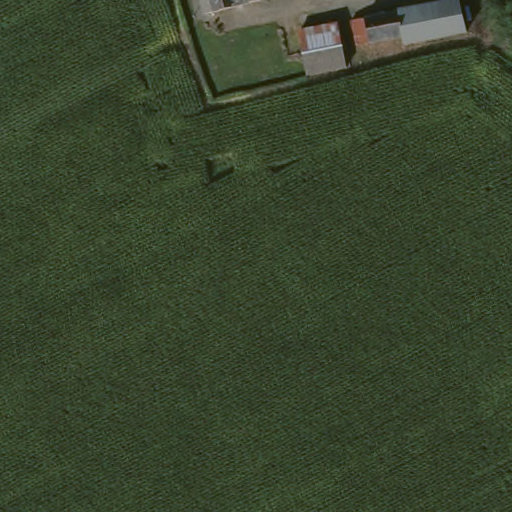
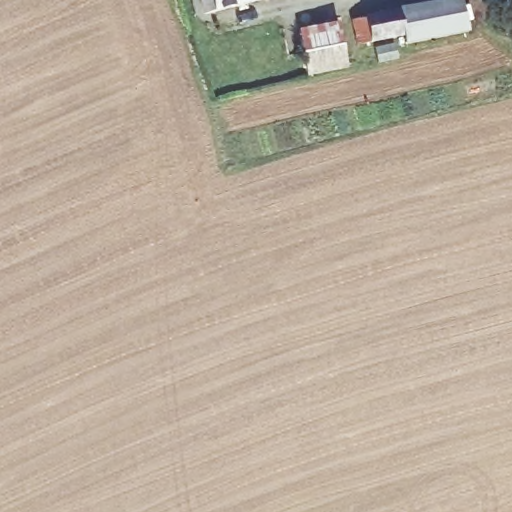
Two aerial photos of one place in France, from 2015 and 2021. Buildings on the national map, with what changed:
unchanged [(205,0),(246,0),(217,7),(217,8),(209,11),(205,0)]
unchanged [(435,0),(459,0),(466,27),(405,41),(402,34),(395,9),(435,0)]
unchanged [(402,34),(357,42),(352,19),(395,9),(402,34)]
unchanged [(320,51),(305,55),(297,27),(315,22),(316,29),(352,19),(357,42),(360,50),(363,63),(326,73),(322,57),(320,51)]

